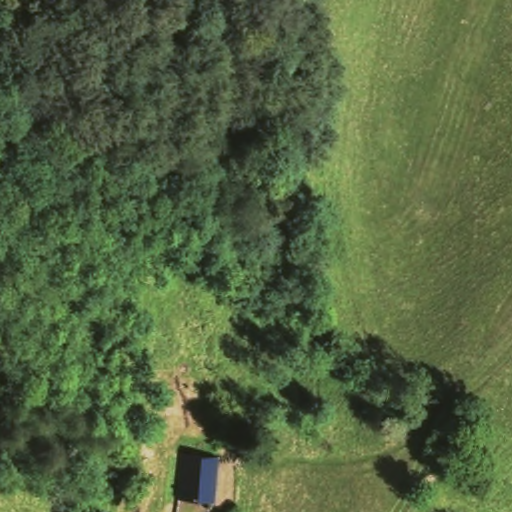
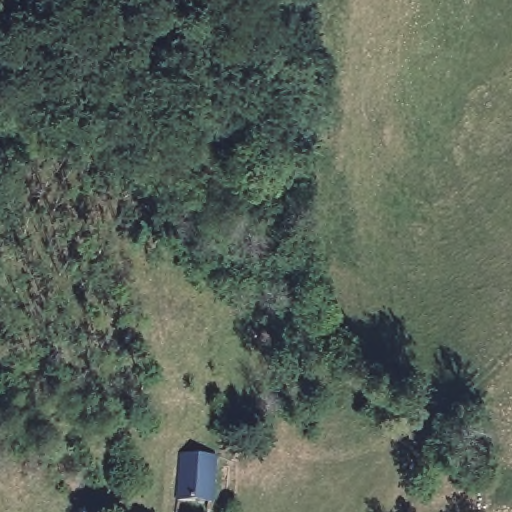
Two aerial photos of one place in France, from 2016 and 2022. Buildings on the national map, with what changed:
unchanged [(181,498),(189,453),(222,457),(219,502),(181,498)]

